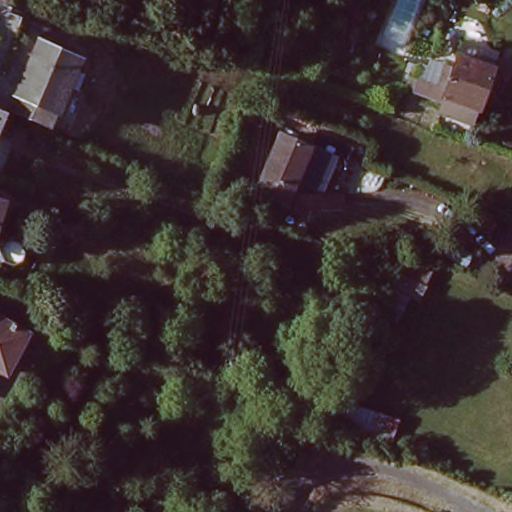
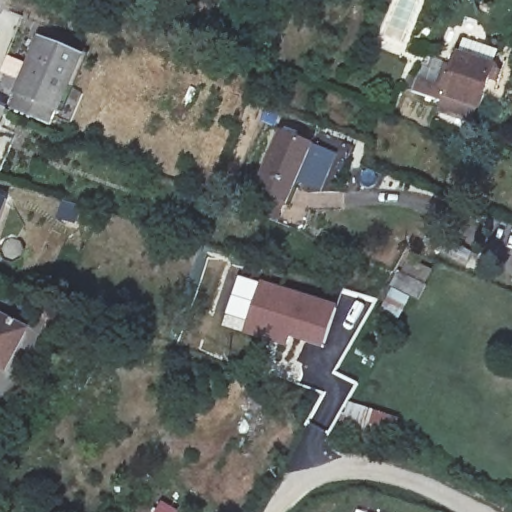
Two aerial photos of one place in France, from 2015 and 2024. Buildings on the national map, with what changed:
unchanged [(43,126),(5,111),(27,64),(22,61),(32,40),(73,56),(43,126)]
unchanged [(445,92),(458,53),(490,63),(478,104),(445,92)]
unchanged [(413,89),(418,74),(441,82),(436,98),(413,89)]
unchanged [(280,205),(247,194),(268,135),(300,147),(280,205)]
unchanged [(1,214),(0,215),(0,213),(1,214)]
unchanged [(440,270),(422,302),(412,294),(400,318),(382,313),(405,254),(440,270)]
new [(325,344),(250,320),(262,281),(336,304),(325,344)]
new [(288,343),(247,329),(250,320),(291,333),(288,343)]
unchanged [(0,372),(0,325),(20,336),(0,372)]
unchanged [(408,417),(396,450),(335,427),(346,394),(408,417)]

